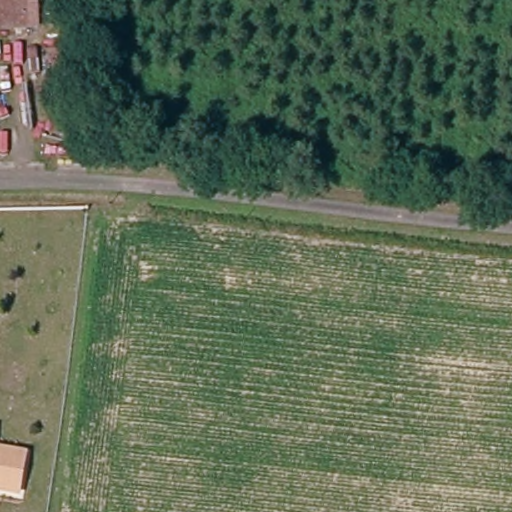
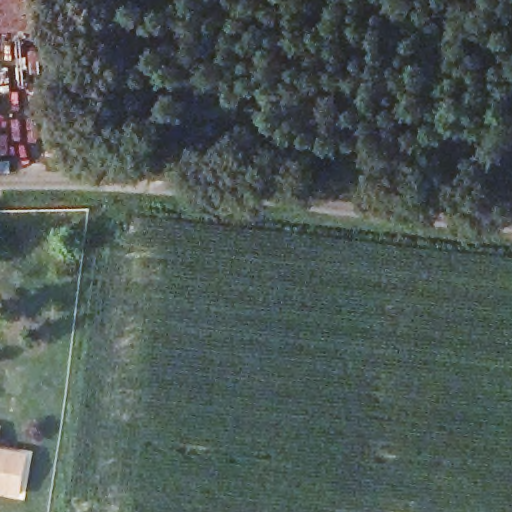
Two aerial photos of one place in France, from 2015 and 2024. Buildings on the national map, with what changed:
unchanged [(30,7),(40,6),(41,29),(31,29),(0,30),(0,0),(30,0),(30,7)]
unchanged [(28,458),(21,497),(0,493),(0,453),(28,458)]

